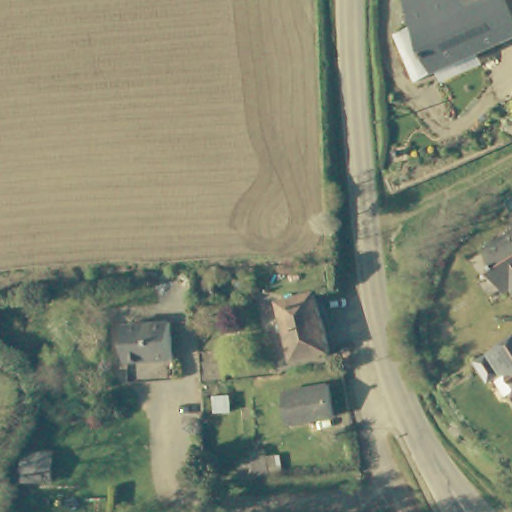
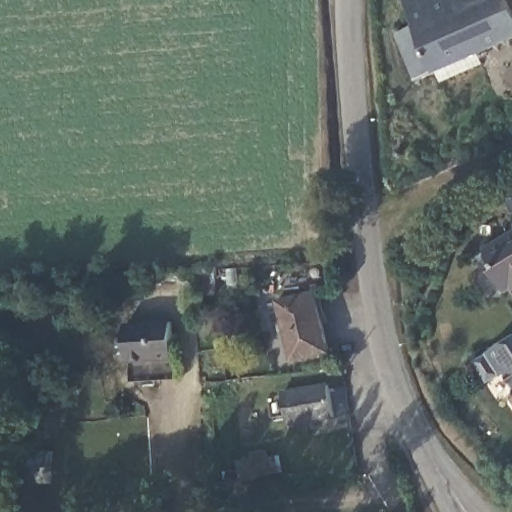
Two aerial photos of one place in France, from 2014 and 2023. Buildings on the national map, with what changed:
unchanged [(512,0),(512,47),(418,87),(397,42),(417,31),(402,4),(410,0),(512,0)]
unchanged [(412,152),(415,161),(400,166),(398,157),(412,152)]
unchanged [(495,275),(498,267),(487,252),(512,235),(512,293),(509,296),(495,275)]
unchanged [(192,266),(209,265),(224,264),(224,277),(210,278),(192,280),(192,266)]
unchanged [(286,303),(321,297),(332,358),(298,364),(286,303)]
unchanged [(152,370),(151,362),(132,365),(130,347),(128,330),(172,325),(175,346),(176,359),(177,367),(152,370)]
unchanged [(506,377),(491,352),(512,340),(512,379),(510,375),(506,377)]
unchanged [(288,426),(283,395),(328,387),(333,419),(288,426)]

